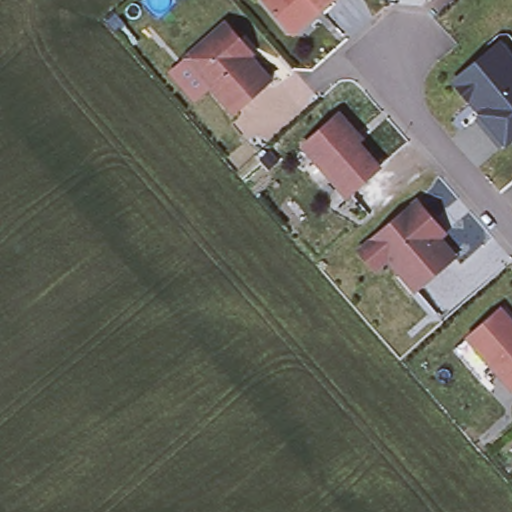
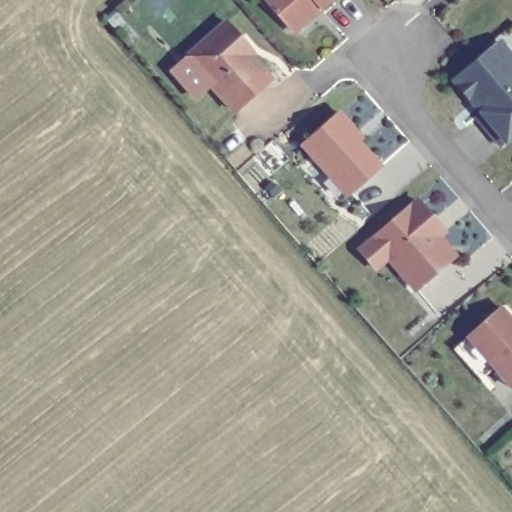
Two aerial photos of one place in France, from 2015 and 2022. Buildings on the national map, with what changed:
unchanged [(265,0),(325,0),(320,4),(307,16),(291,30),(265,0)]
unchanged [(232,22),(245,37),(254,48),(250,51),(273,77),(237,107),(214,80),(199,94),(177,68),(193,55),(232,22)]
unchanged [(462,85),(465,73),(499,46),(512,61),(512,141),(507,145),(484,116),(487,113),(470,93),(462,85)]
unchanged [(342,112),(357,130),(352,135),(380,167),(353,191),(334,169),(327,174),(304,147),(342,112)]
unchanged [(443,226),(437,231),(453,250),(414,283),(389,252),(376,263),(360,244),(418,196),(434,215),(443,226)]
unchanged [(506,303),(512,310),(512,375),(474,332),(506,303)]

